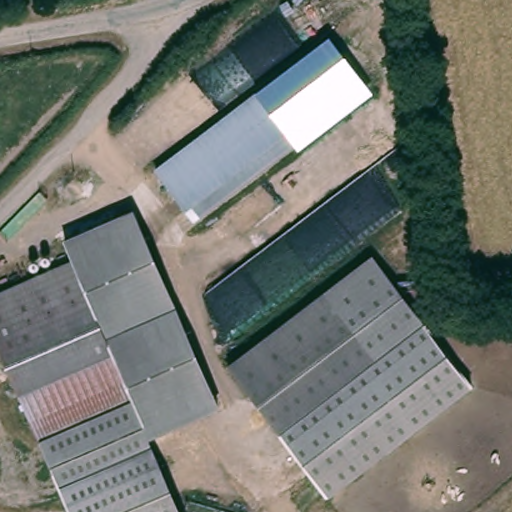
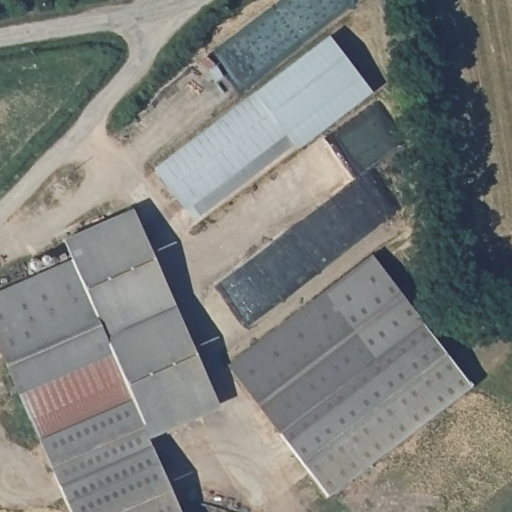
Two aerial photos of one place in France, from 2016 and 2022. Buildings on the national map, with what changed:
unchanged [(257,93),(330,38),(375,94),(299,151),(294,145),(193,223),(155,171),(257,93)]
unchanged [(134,395),(83,256),(85,256),(77,234),(148,208),(220,405),(149,431),(158,455),(63,490),(40,429),(134,395)]
unchanged [(83,256),(134,395),(40,429),(0,318),(0,287),(83,256)]
unchanged [(371,256),(423,318),(462,364),(475,380),(465,388),(336,497),(285,435),(232,373),(371,256)]
unchanged [(180,512),(72,512),(63,490),(158,455),(180,512)]

